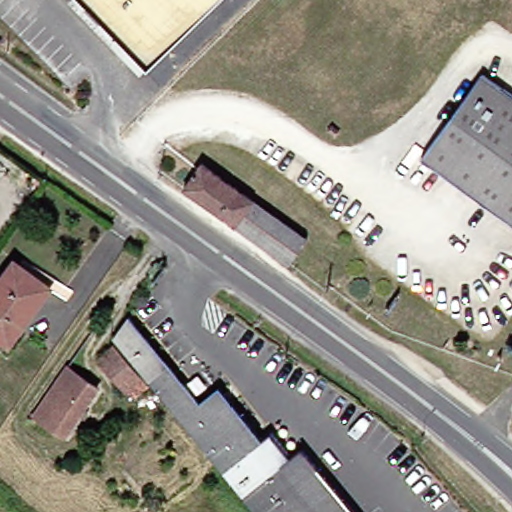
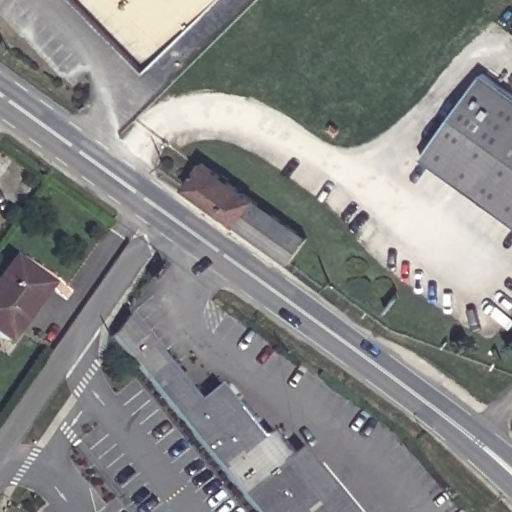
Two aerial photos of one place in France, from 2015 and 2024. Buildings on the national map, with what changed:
unchanged [(152,69),(84,0),(222,0),(152,69)]
unchanged [(487,75),(512,92),(512,219),(427,158),(487,75)]
unchanged [(312,240),(295,262),(190,188),(207,162),(312,240)]
unchanged [(0,329),(0,293),(25,260),(61,286),(19,343),(0,329)]
unchanged [(138,320),(210,406),(229,391),(292,469),(312,453),(359,512),(262,512),(123,343),(138,320)]
unchanged [(152,383),(137,396),(109,364),(124,351),(152,383)]
demolished [(102,386),(70,436),(39,415),(72,366),(102,386)]

